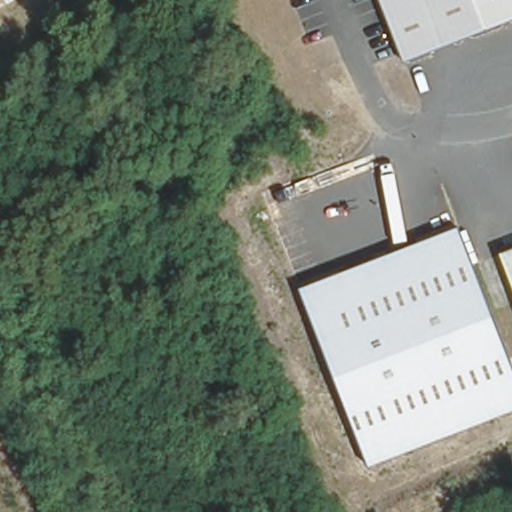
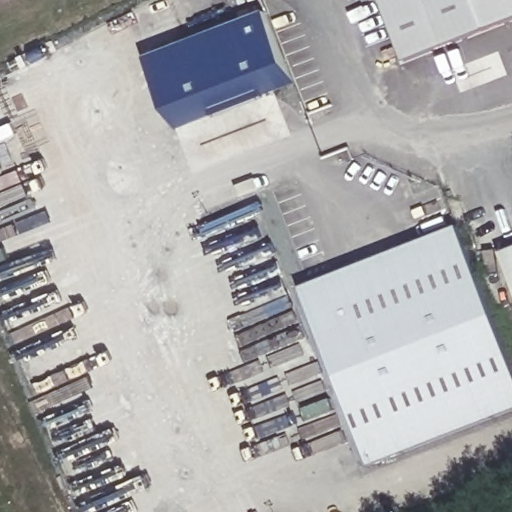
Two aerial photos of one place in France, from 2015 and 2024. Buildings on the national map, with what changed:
unchanged [(382,0),(487,0),(398,37),(382,0)]
unchanged [(512,0),(512,19),(408,62),(398,37),(487,0),(512,0)]
new [(176,128),(151,57),(265,13),(294,85),(176,128)]
unchanged [(459,224),(512,364),(512,412),(368,466),(299,285),(459,224)]
unchanged [(512,244),(512,277),(501,249),(512,244)]

